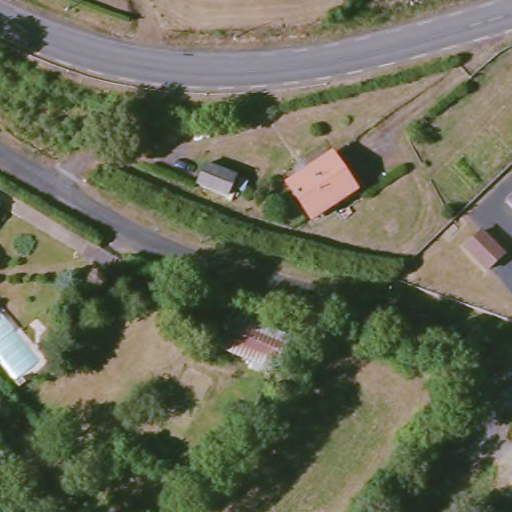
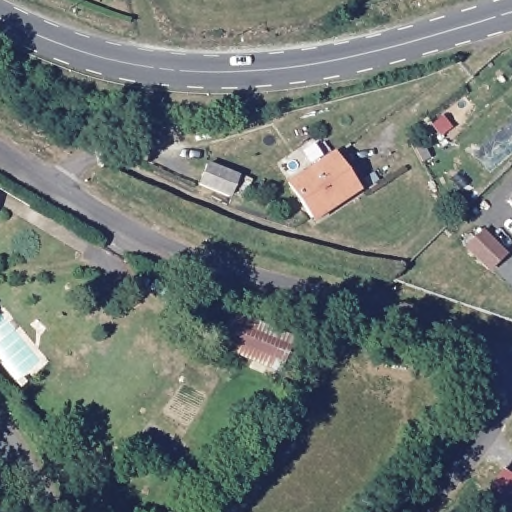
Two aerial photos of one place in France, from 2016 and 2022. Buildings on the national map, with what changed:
unchanged [(282,184),(326,155),(348,189),(305,218),(282,184)]
unchanged [(235,178),(227,198),(197,185),(205,164),(235,178)]
unchanged [(512,193),(512,212),(502,202),(512,193)]
unchanged [(481,232),(503,255),(487,270),(465,247),(481,232)]
unchanged [(0,307),(41,362),(10,383),(0,368),(0,307)]
unchanged [(290,339),(275,372),(216,346),(230,314),(290,339)]

